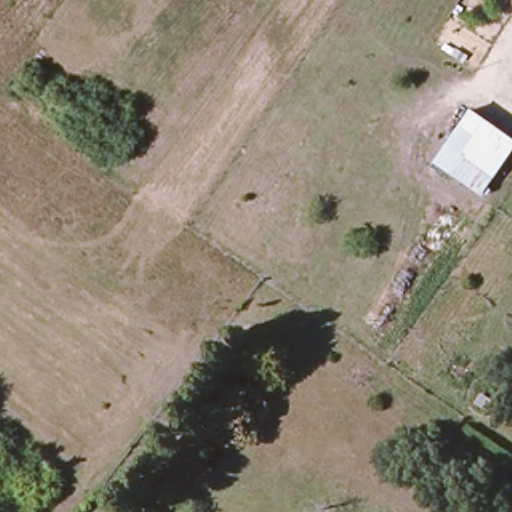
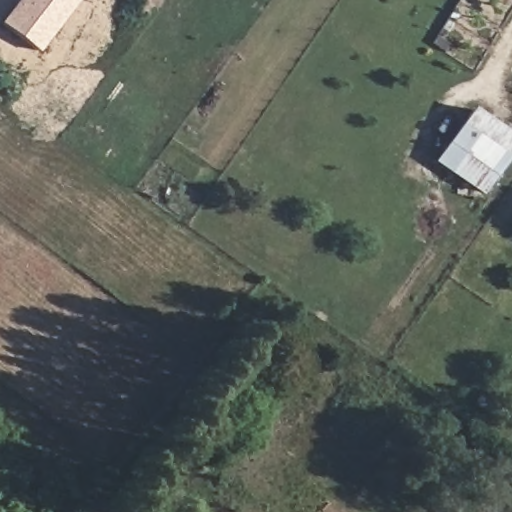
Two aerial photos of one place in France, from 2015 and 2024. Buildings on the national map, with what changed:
new [(78,0),(37,52),(0,24),(18,0),(78,0)]
unchanged [(512,135),(512,160),(483,196),(434,165),(474,110),(512,135)]

